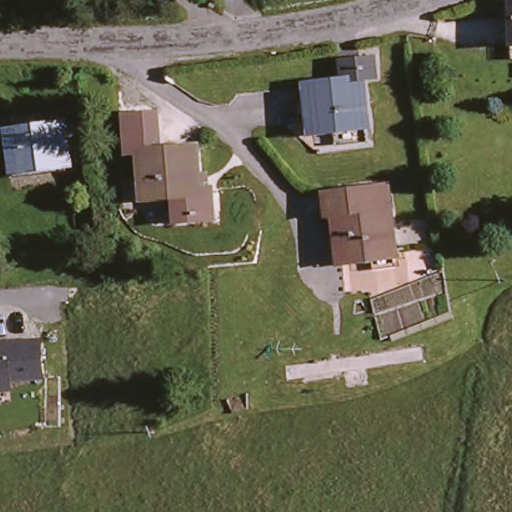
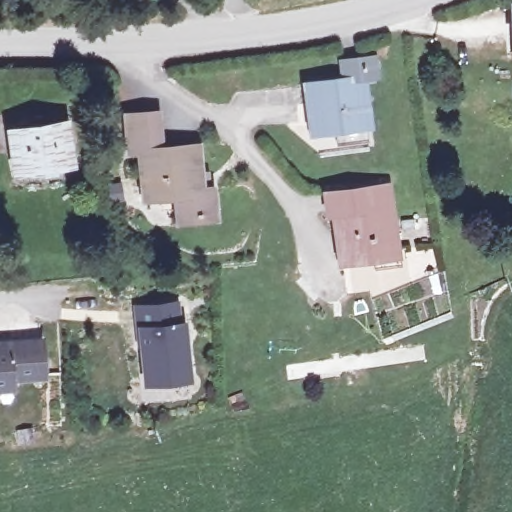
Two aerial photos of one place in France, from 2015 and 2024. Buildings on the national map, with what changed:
unchanged [(363,69),(371,137),(339,140),(338,123),(316,125),(311,76),(363,69)]
unchanged [(141,152),(127,153),(123,118),(155,114),(159,150),(193,146),(199,195),(212,193),(214,218),(181,221),(179,197),(147,200),(141,152)]
unchanged [(16,129),(65,124),(69,161),(21,167),(16,129)]
unchanged [(329,191),(387,184),(396,265),(374,268),(372,255),(341,259),(337,211),(330,212),(329,191)]
new [(136,349),(133,306),(178,300),(179,320),(186,319),(193,381),(143,386),(139,349),(136,349)]
unchanged [(17,383),(18,393),(0,394),(0,341),(47,338),(49,380),(17,383)]

